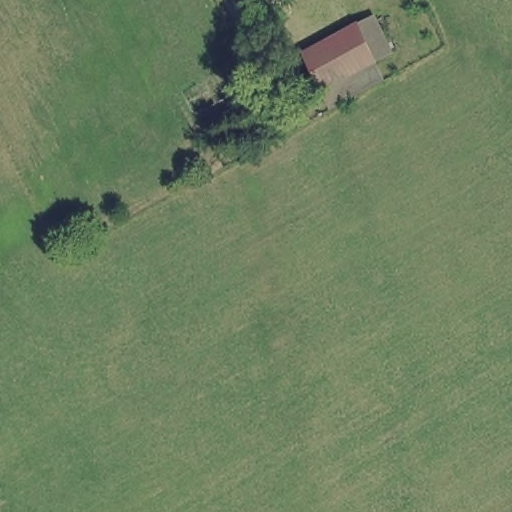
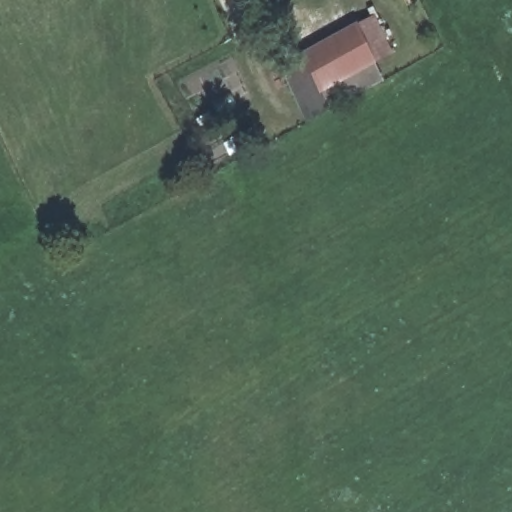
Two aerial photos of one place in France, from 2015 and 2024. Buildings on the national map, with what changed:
unchanged [(248,1),(227,13),(221,0),(247,0),(248,1)]
unchanged [(314,95),(295,57),(358,22),(378,63),(314,95)]

